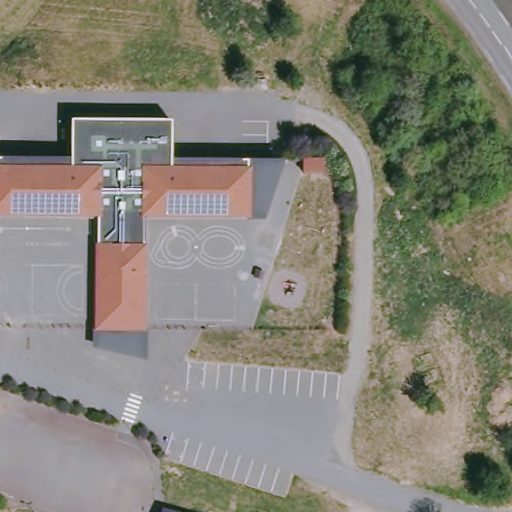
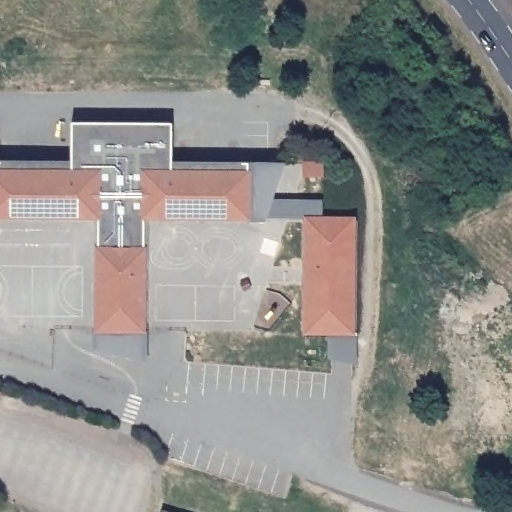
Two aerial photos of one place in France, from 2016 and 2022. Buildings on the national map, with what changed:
unchanged [(249,219),(144,219),(144,334),(97,334),(97,219),(0,219),(0,164),(70,164),(70,124),(172,124),(172,164),(249,164),(249,219)]
new [(314,214),(360,214),(360,328),(340,328),(314,328),(314,214)]

